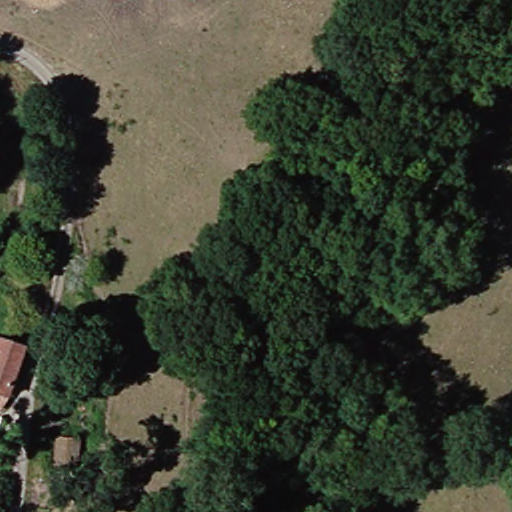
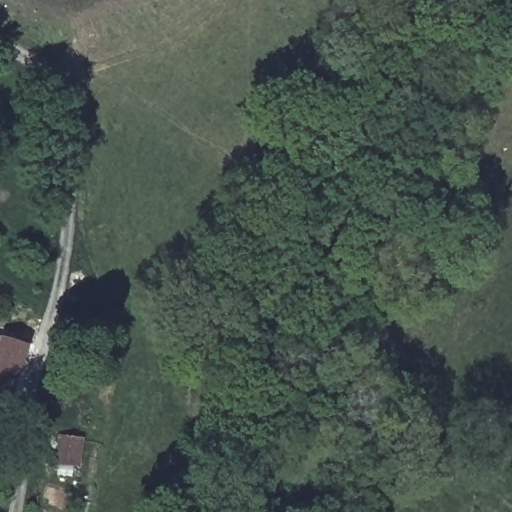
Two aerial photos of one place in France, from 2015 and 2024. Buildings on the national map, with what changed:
unchanged [(0,416),(0,341),(25,348),(12,398),(6,417),(0,416)]
unchanged [(84,442),(75,476),(57,472),(66,438),(84,442)]

